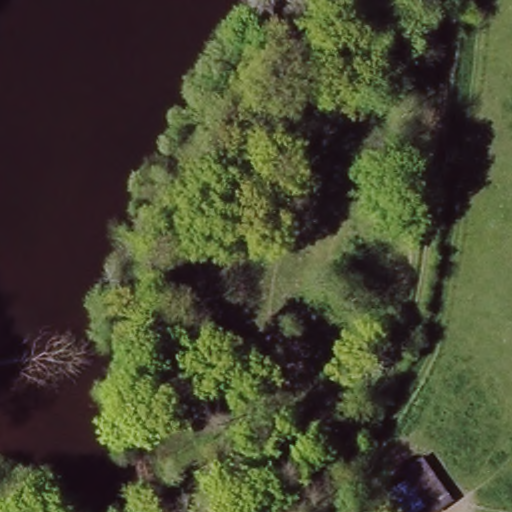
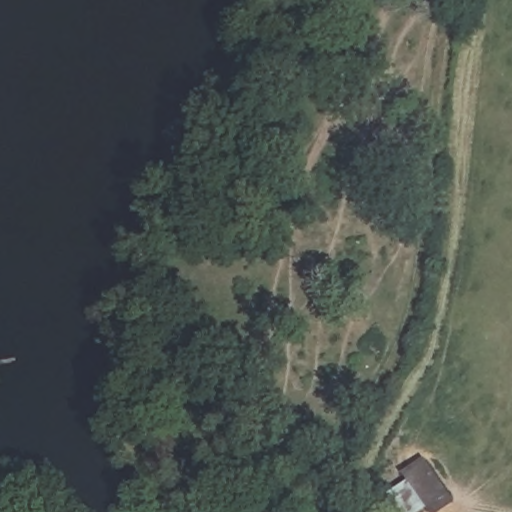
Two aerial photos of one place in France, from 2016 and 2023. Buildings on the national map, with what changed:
unchanged [(407,481),(400,471),(423,457),(455,503),(441,512),(428,512),(425,508),(419,512),(399,512),(387,493),(407,481)]

